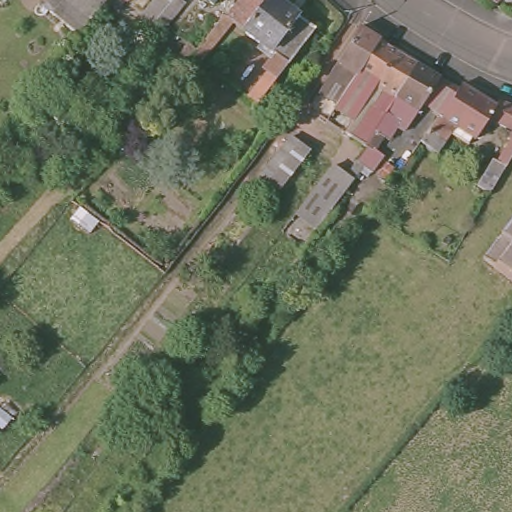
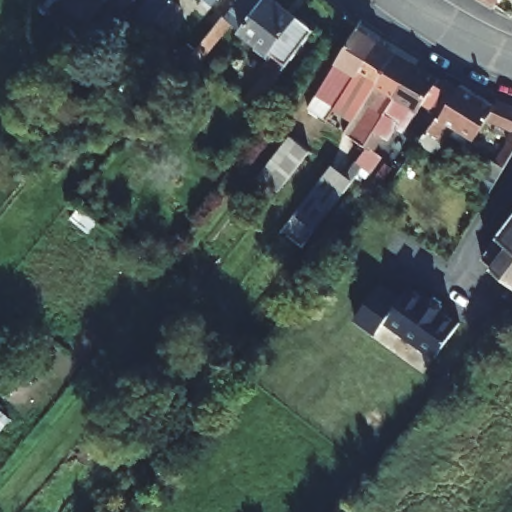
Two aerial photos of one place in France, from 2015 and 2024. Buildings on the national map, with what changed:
unchanged [(78,38),(44,10),(52,0),(108,0),(78,38)]
unchanged [(131,2),(128,0),(132,0),(131,2)]
unchanged [(260,116),(251,109),(269,84),(264,80),(278,63),(239,29),(208,66),(197,57),(203,50),(197,45),(220,17),(226,21),(243,0),(279,0),(317,31),(260,116)]
unchanged [(498,4),(491,0),(500,0),(498,4)]
unchanged [(184,16),(165,40),(152,29),(170,7),(184,16)]
unchanged [(144,29),(149,33),(142,42),(142,43),(137,39),(144,29)]
unchanged [(359,36),(373,43),(333,106),(321,99),(359,36)]
unchanged [(330,111),(333,106),(373,43),(398,59),(380,88),(356,128),(330,111)]
unchanged [(359,141),(389,94),(380,88),(398,59),(415,69),(369,147),(359,141)]
unchanged [(415,69),(425,75),(439,84),(420,115),(407,107),(379,153),(369,147),(415,69)]
unchanged [(474,144),(454,132),(447,144),(433,135),(462,87),(489,102),(495,106),(498,103),(499,102),(512,107),(512,130),(490,118),(474,144)]
unchanged [(307,152),(275,193),(253,175),(285,135),(307,152)]
unchanged [(512,137),(512,162),(508,169),(498,163),(512,137)]
unchanged [(335,167),(345,176),(369,147),(379,153),(389,159),(376,178),(365,170),(317,235),(295,217),(335,167)]
unchanged [(90,239),(72,223),(82,212),(101,225),(90,239)]
unchanged [(512,232),(512,288),(486,269),(512,232)]
new [(383,284),(403,299),(412,287),(432,301),(433,298),(438,297),(445,302),(445,307),(444,310),(463,324),(438,358),(388,322),(379,335),(358,319),(383,284)]

